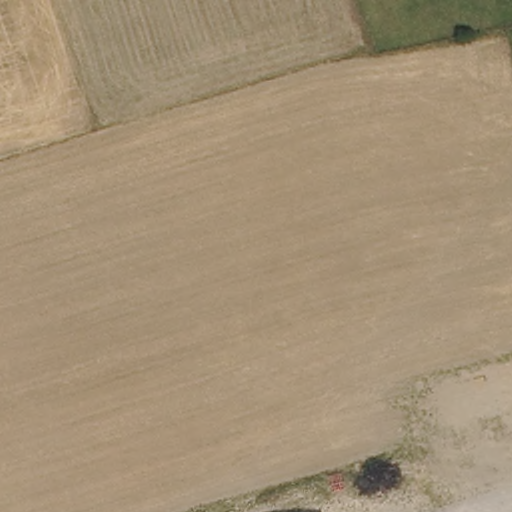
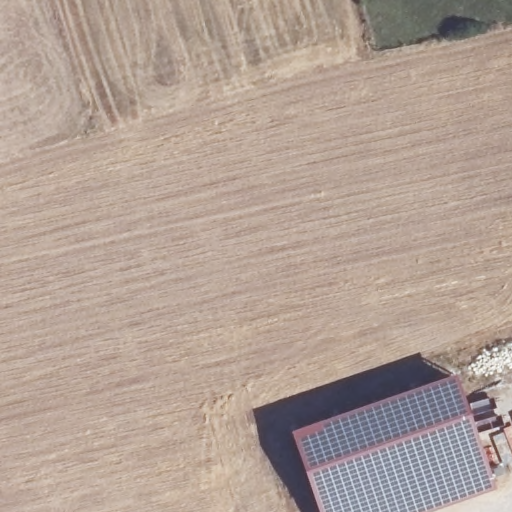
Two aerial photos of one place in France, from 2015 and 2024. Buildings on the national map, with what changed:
new [(454,369),(497,487),(431,512),(318,512),(289,427),(454,369)]

